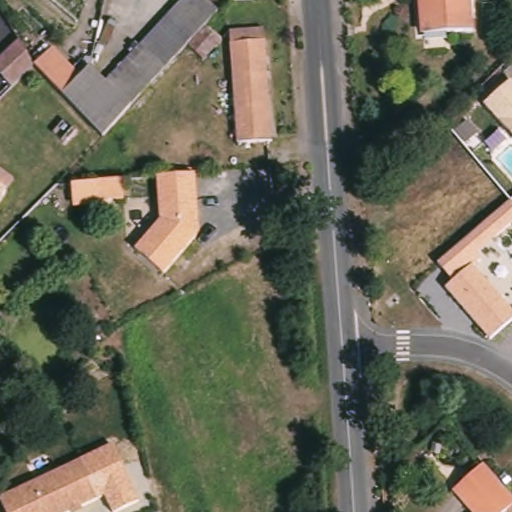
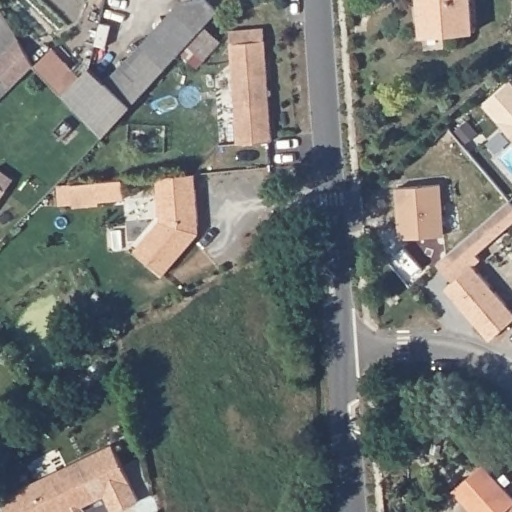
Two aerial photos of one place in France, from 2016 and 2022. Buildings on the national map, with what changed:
unchanged [(447,36),(446,29),(420,32),(418,0),(468,0),(470,34),(447,36)]
unchanged [(209,2),(223,17),(121,108),(99,131),(61,84),(73,72),(88,60),(102,76),(185,3),(209,2)]
unchanged [(258,33),(270,144),(237,144),(226,35),(258,33)]
unchanged [(73,72),(61,84),(54,90),(31,69),(30,67),(24,62),(41,44),(73,72)]
unchanged [(24,62),(30,67),(31,69),(9,90),(0,82),(0,52),(7,45),(24,62)]
unchanged [(512,80),(512,137),(483,104),(512,80)]
unchanged [(198,175),(199,240),(163,275),(136,247),(147,226),(161,223),(160,176),(198,175)]
unchanged [(124,178),(125,200),(95,202),(95,206),(73,209),(71,183),(124,178)]
new [(402,236),(398,187),(442,184),(446,232),(402,236)]
unchanged [(2,189),(0,192),(0,188),(2,189)]
unchanged [(512,223),(470,263),(512,313),(512,320),(489,340),(444,288),(451,281),(435,263),(509,201),(512,205),(512,223)]
unchanged [(113,445),(140,502),(115,512),(111,512),(104,498),(99,502),(85,470),(80,460),(113,445)]
unchanged [(99,502),(75,512),(5,512),(0,501),(0,497),(80,460),(99,502)]
unchanged [(449,492),(481,463),(512,499),(512,503),(503,512),(467,512),(449,492)]

